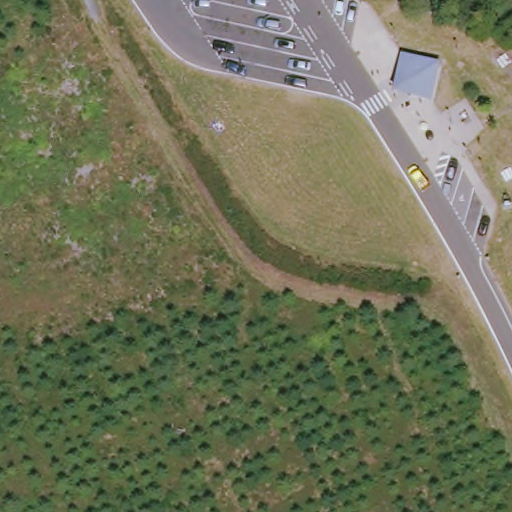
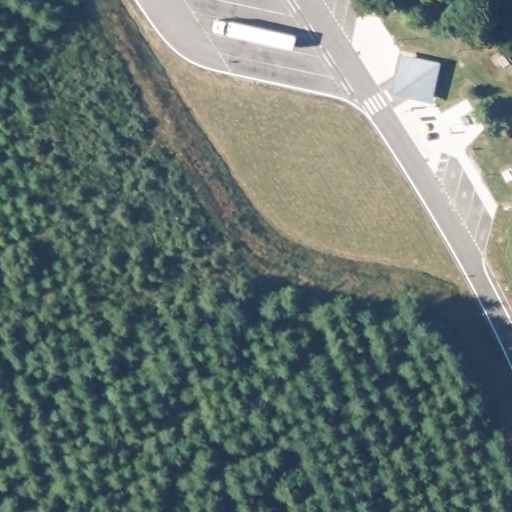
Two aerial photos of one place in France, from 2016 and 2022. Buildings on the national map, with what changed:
unchanged [(440,64),(431,99),(394,88),(403,54),(440,64)]

